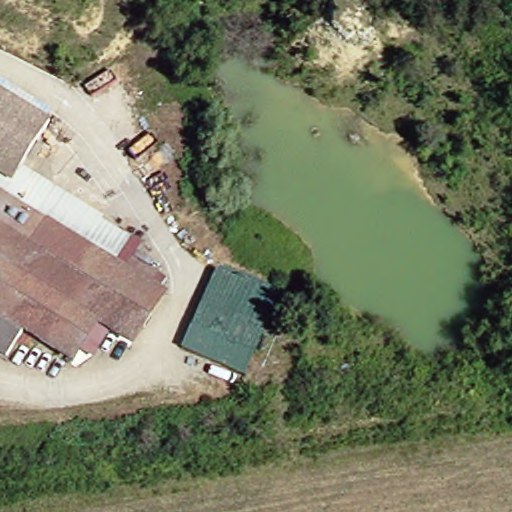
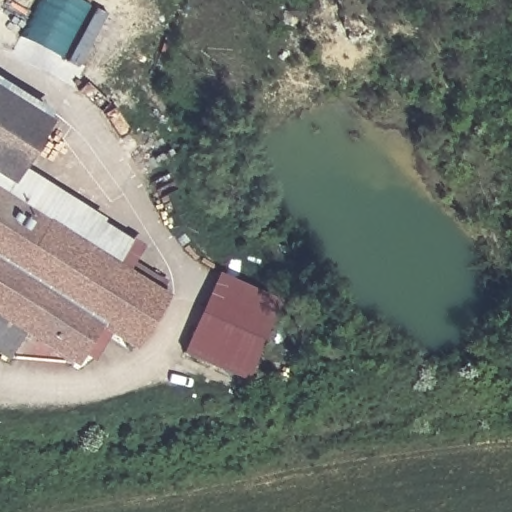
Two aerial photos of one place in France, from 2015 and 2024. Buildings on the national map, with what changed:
new [(81,0),(92,6),(64,60),(22,37),(41,0),(81,0)]
unchanged [(24,164),(13,181),(0,173),(0,88),(51,120),(24,164)]
unchanged [(24,164),(106,216),(104,221),(142,242),(130,272),(0,191),(0,173),(13,181),(24,164)]
unchanged [(169,297),(137,347),(101,324),(75,363),(26,330),(8,358),(0,353),(0,191),(130,272),(169,297)]
unchanged [(283,301),(249,381),(188,353),(224,276),(283,301)]

